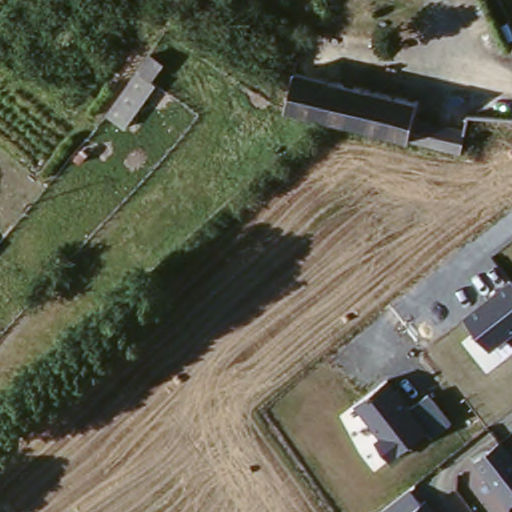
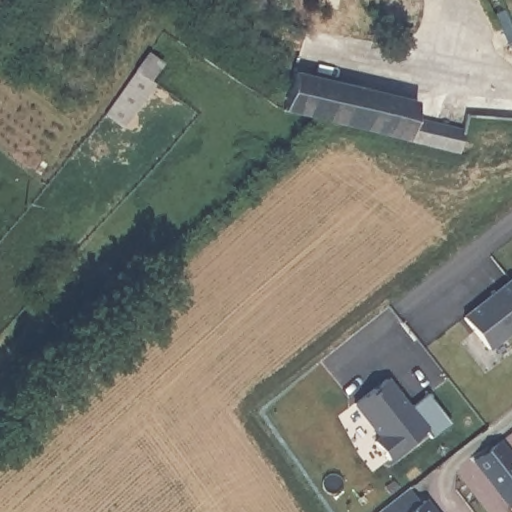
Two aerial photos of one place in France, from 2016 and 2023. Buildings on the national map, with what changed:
unchanged [(169,63),(129,126),(111,110),(153,52),(169,63)]
unchanged [(422,102),(418,119),(413,142),(335,122),(295,112),(284,109),(295,70),(422,102)]
unchanged [(460,155),(413,142),(418,119),(465,127),(460,155)]
unchanged [(461,316),(510,279),(512,282),(512,333),(489,350),(461,316)]
unchanged [(374,440),(380,437),(355,404),(389,378),(409,408),(429,395),(449,423),(426,441),(390,461),(374,440)]
unchanged [(512,447),(512,502),(478,460),(505,438),(512,447)]
unchanged [(438,512),(409,512),(428,498),(438,512)]

